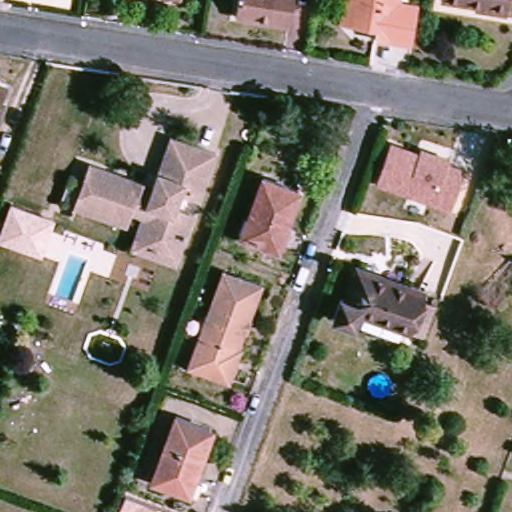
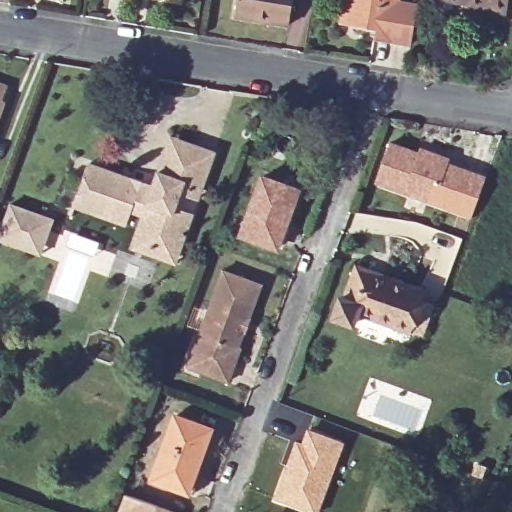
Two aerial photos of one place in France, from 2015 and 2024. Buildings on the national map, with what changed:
unchanged [(290,25),(237,16),(240,0),(294,0),(290,25)]
unchanged [(344,0),(397,0),(391,36),(349,29),(339,28),(344,0)]
unchanged [(441,1),(441,0),(509,0),(507,9),(507,11),(441,1)]
unchanged [(1,101),(5,102),(0,114),(0,85),(5,87),(1,101)]
unchanged [(140,214),(127,211),(124,218),(122,223),(90,212),(71,205),(86,162),(138,180),(150,184),(155,170),(166,138),(175,141),(211,154),(199,188),(195,199),(189,197),(177,193),(172,207),(189,214),(175,254),(171,263),(127,246),(140,214)]
unchanged [(390,142),(419,152),(420,149),(450,159),(448,162),(465,168),(450,209),(375,183),(390,142)]
unchanged [(276,251),(240,239),(261,180),(297,193),(276,251)]
unchanged [(54,219),(40,256),(0,243),(0,230),(9,204),(54,219)]
unchanged [(411,337),(350,314),(346,324),(330,318),(336,298),(340,298),(353,267),(426,295),(411,337)]
unchanged [(195,351),(223,271),(261,285),(238,348),(241,349),(229,383),(201,373),(189,368),(195,351)]
unchanged [(180,488),(150,477),(174,413),(207,426),(192,467),(185,490),(180,488)]
new [(300,441),(306,427),(345,442),(318,512),(306,512),(271,499),(295,439),(300,441)]
unchanged [(172,512),(118,512),(125,494),(172,512)]

